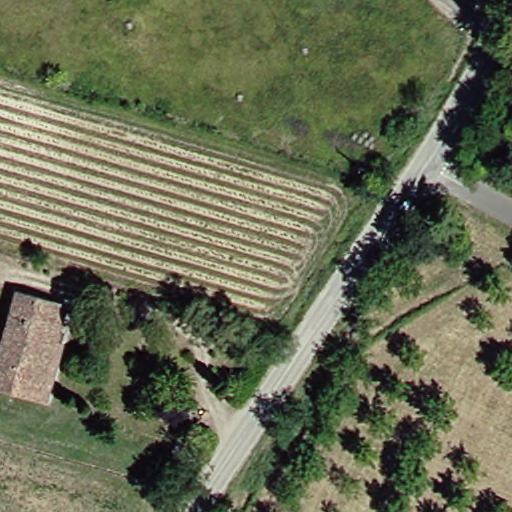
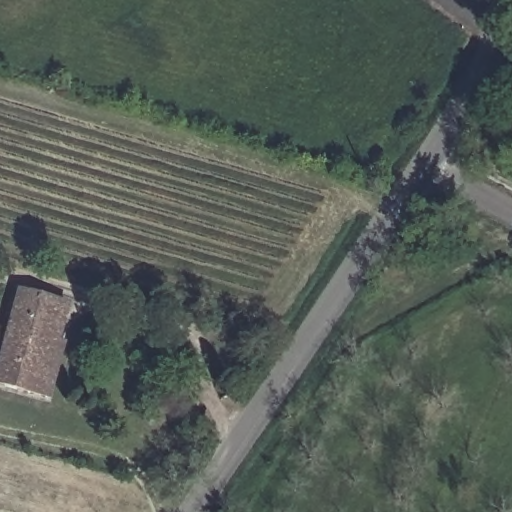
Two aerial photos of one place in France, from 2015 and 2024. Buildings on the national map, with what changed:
unchanged [(0,389),(0,315),(7,290),(44,300),(52,302),(41,342),(46,344),(43,356),(31,397),(0,389)]

